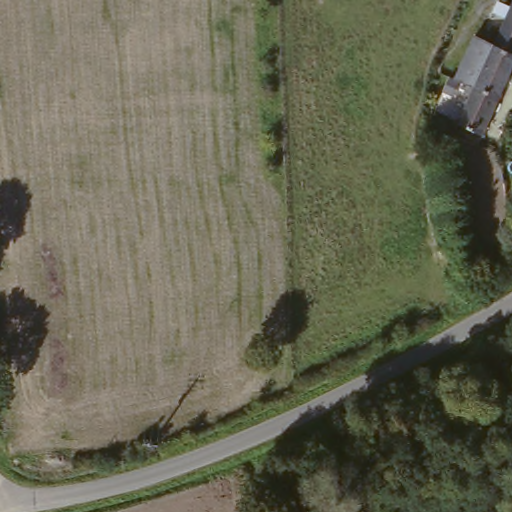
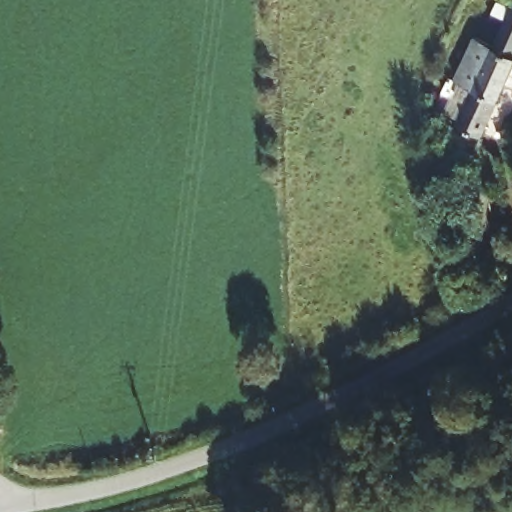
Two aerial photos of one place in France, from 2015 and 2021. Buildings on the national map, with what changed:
unchanged [(471,109),(494,55),(512,17),(512,81),(483,149),(458,137),(471,109)]
unchanged [(460,102),(463,95),(451,88),(471,43),(494,55),(471,109),(460,102)]

